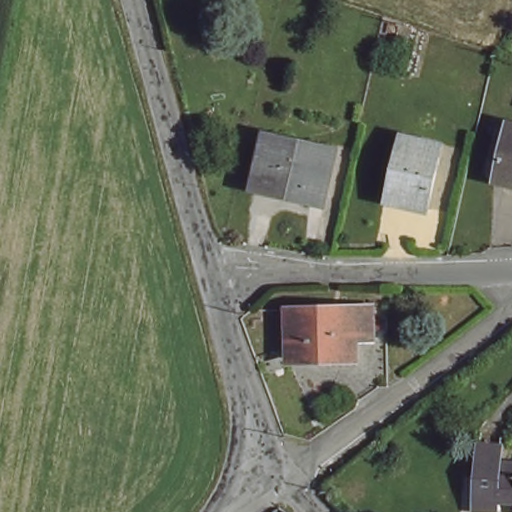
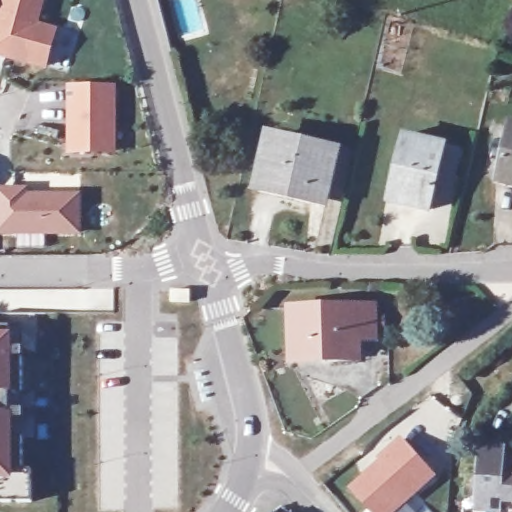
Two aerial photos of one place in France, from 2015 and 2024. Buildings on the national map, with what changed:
new [(58,29),(46,70),(0,57),(0,3),(1,0),(45,0),(39,24),(58,29)]
new [(116,153),(68,153),(68,86),(116,85),(116,153)]
unchanged [(497,186),(512,135),(512,189),(497,186)]
unchanged [(444,149),(427,217),(407,211),(408,204),(385,197),(399,136),(444,149)]
unchanged [(331,158),(319,206),(257,191),(268,142),(331,158)]
new [(0,235),(0,187),(28,187),(28,194),(82,193),(82,235),(0,235)]
unchanged [(373,308),(373,340),(355,341),(356,368),(329,367),(329,358),(289,358),(288,309),(373,308)]
new [(30,440),(20,440),(19,471),(27,472),(29,507),(0,506),(0,337),(28,337),(30,440)]
new [(379,456),(401,436),(438,476),(397,512),(369,512),(348,490),(379,456)]
unchanged [(503,498),(503,512),(479,511),(479,497),(481,442),(503,443),(503,465),(512,465),(512,498),(503,498)]

